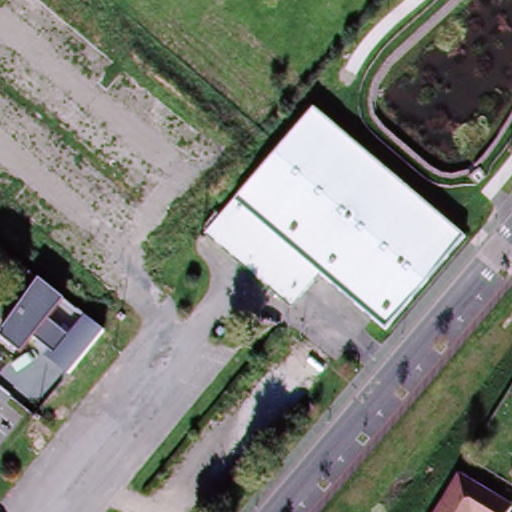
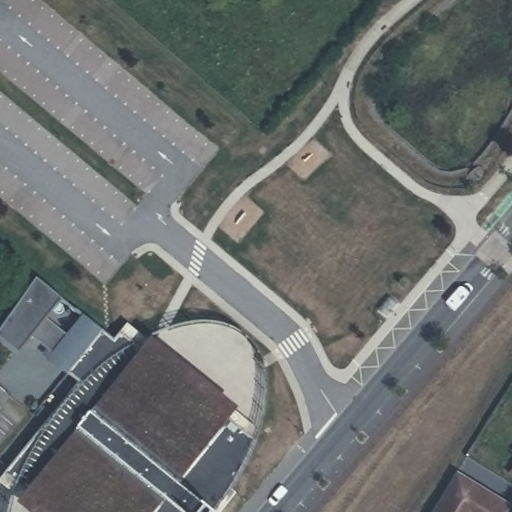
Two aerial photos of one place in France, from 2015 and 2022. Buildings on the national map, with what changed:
demolished [(289,309),(205,237),(216,225),(314,111),(429,208),(374,297),(364,313),(322,278),(304,299),(291,312),(289,309)]
demolished [(466,239),(386,332),(364,313),(374,297),(429,208),(466,239)]
unchanged [(49,320),(68,336),(85,314),(105,331),(69,376),(45,356),(48,352),(33,338),(21,355),(0,338),(0,333),(38,280),(63,300),(49,320)]
new [(21,503),(23,501),(0,482),(83,383),(71,373),(105,331),(115,340),(129,323),(151,342),(154,338),(240,409),(238,411),(259,427),(253,438),(256,441),(246,462),(231,489),(213,510),(215,512),(33,512),(21,503)]
unchanged [(506,466),(511,460),(512,461),(512,471),(506,466)]
unchanged [(512,471),(512,486),(505,479),(512,471)]
unchanged [(512,505),(512,509),(510,512),(433,512),(458,474),(512,505)]

